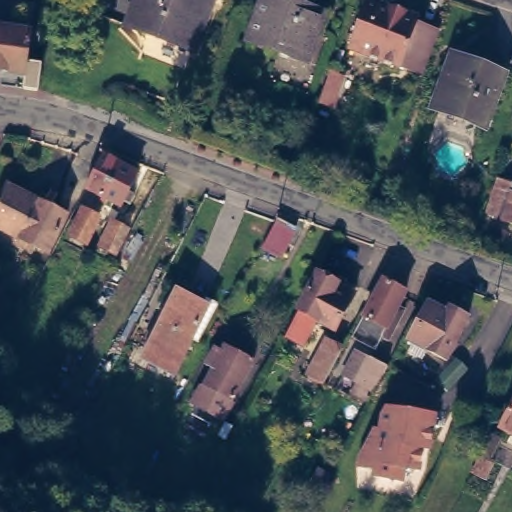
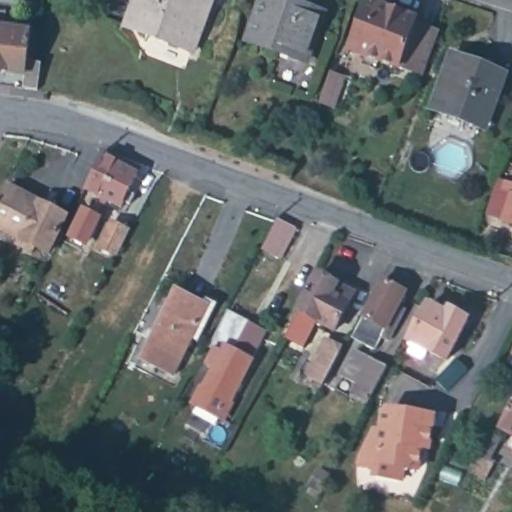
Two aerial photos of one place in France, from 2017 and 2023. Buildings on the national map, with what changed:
unchanged [(131,25),(141,0),(211,0),(194,48),(131,25)]
unchanged [(335,9),(318,54),(261,33),(274,0),(312,0),(335,9)]
unchanged [(354,49),(364,22),(371,2),(380,5),(441,28),(423,76),(354,49)]
unchanged [(36,69),(19,67),(18,71),(6,69),(8,64),(0,63),(0,22),(43,29),(36,69)]
unchanged [(486,121),(433,101),(447,64),(453,47),(463,51),(506,68),(486,121)]
unchanged [(339,72),(327,106),(313,101),(326,66),(339,72)]
unchanged [(40,71),(53,73),(50,96),(38,94),(40,71)]
unchanged [(138,167),(119,199),(106,192),(104,195),(96,190),(98,187),(83,179),(100,145),(138,167)]
unchanged [(501,169),(511,172),(509,177),(512,178),(512,217),(487,208),(501,169)]
unchanged [(48,251),(0,225),(0,198),(8,182),(68,215),(48,251)]
unchanged [(89,206),(102,214),(86,241),(73,233),(89,206)]
unchanged [(290,224),(275,252),(257,243),(272,214),(290,224)]
unchanged [(109,251),(94,242),(107,219),(122,228),(109,251)]
unchanged [(387,269),(409,281),(402,293),(409,297),(392,328),(386,324),(383,329),(378,335),(357,323),(360,317),(387,269)]
unchanged [(324,318),(309,345),(291,335),(306,308),(304,307),(324,271),(346,283),(342,292),(356,299),(341,327),(324,318)]
unchanged [(216,305),(183,370),(153,354),(178,308),(166,302),(176,283),(216,305)]
unchanged [(449,308),(451,304),(471,313),(449,354),(412,334),(431,299),(449,308)]
unchanged [(202,388),(209,374),(230,336),(258,351),(238,389),(230,403),(202,388)]
unchanged [(319,341),(334,348),(316,380),(303,373),(319,341)]
unchanged [(344,390),(364,355),(381,365),(363,400),(344,390)]
unchanged [(512,400),(512,432),(499,424),(512,400)]
unchanged [(438,430),(432,430),(430,451),(423,451),(421,469),(406,469),(404,482),(370,479),(372,471),(356,467),(373,430),(377,429),(379,414),(386,404),(438,414),(438,430)]

